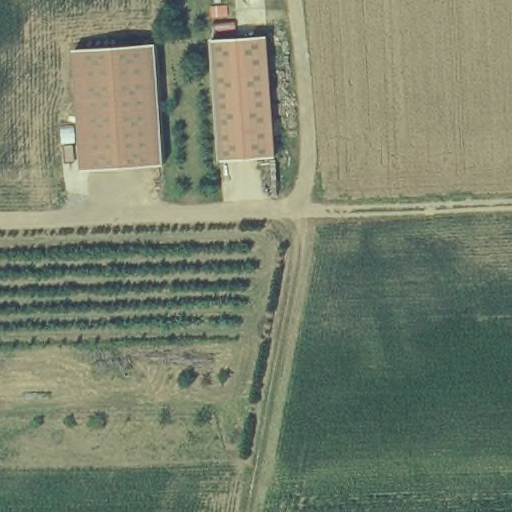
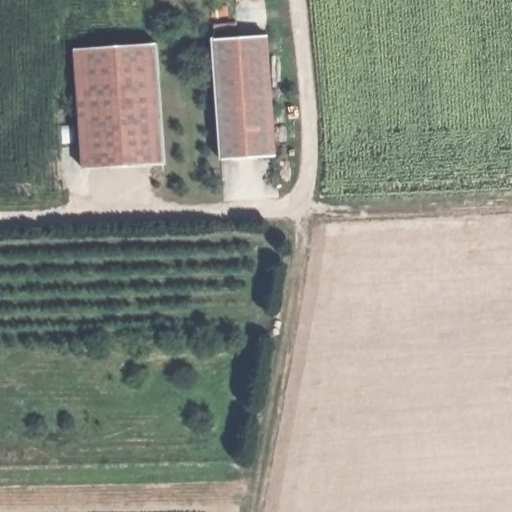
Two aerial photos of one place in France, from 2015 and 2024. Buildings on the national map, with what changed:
unchanged [(214,31),(270,28),(278,149),(222,153),(214,31)]
unchanged [(85,173),(77,51),(159,44),(167,166),(85,173)]

